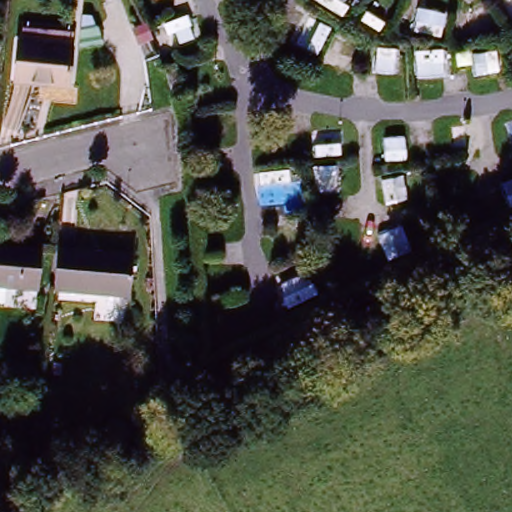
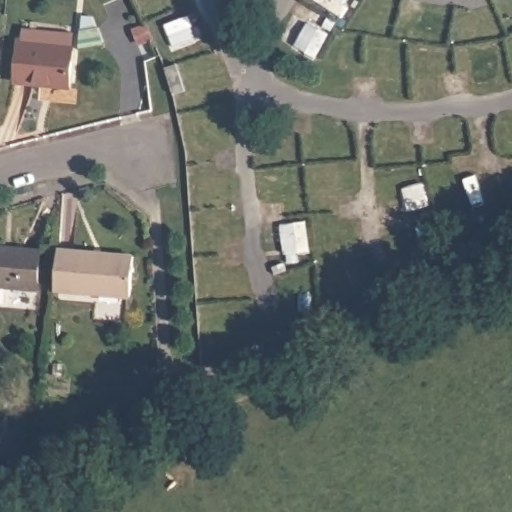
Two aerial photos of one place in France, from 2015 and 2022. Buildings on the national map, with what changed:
unchanged [(65,88),(15,86),(17,49),(67,52),(65,88)]
unchanged [(38,292),(0,292),(0,246),(45,247),(38,292)]
unchanged [(60,248),(132,255),(130,298),(57,292),(60,248)]

